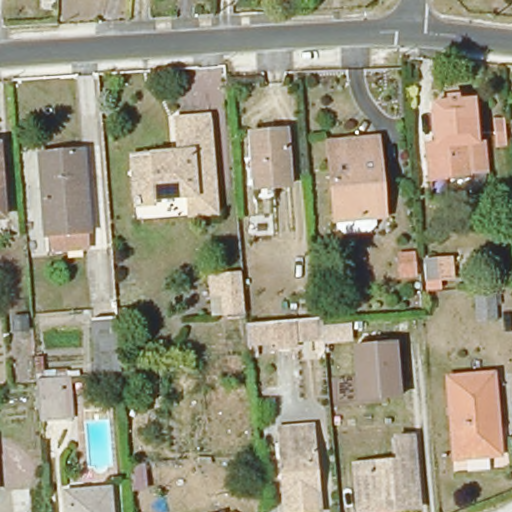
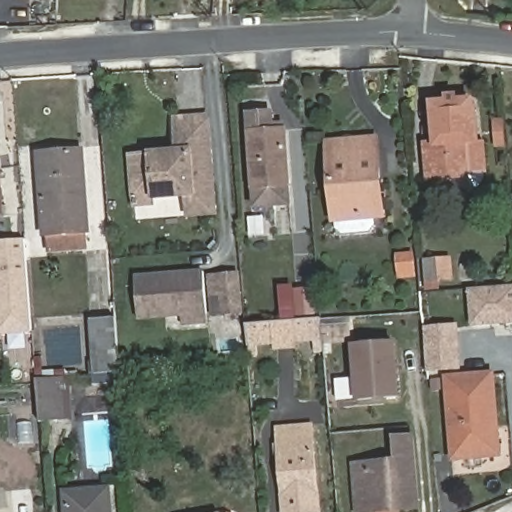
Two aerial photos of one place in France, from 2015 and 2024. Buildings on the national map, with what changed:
unchanged [(430,169),(427,135),(435,135),(432,101),(445,100),(445,98),(445,97),(445,96),(445,95),(446,94),(447,93),(448,92),(449,92),(450,91),(451,91),(452,92),(454,92),(455,93),(455,94),(456,95),(457,95),(457,97),(457,98),(457,99),(471,99),(474,131),(478,131),(481,165),(481,167),(481,170),(480,172),(479,174),(477,176),(476,178),(474,180),(471,180),(469,181),(466,182),(432,186),(430,169)]
unchanged [(145,192),(142,152),(181,149),(178,116),(209,114),(220,219),(194,221),(192,201),(160,205),(147,205),(145,192)]
unchanged [(257,193),(252,137),(286,134),(290,190),(257,193)]
unchanged [(374,220),(333,224),(327,147),(341,146),(375,144),(376,156),(379,187),(381,220),(374,220)]
unchanged [(88,235),(46,238),(38,155),(82,152),(88,235)]
unchanged [(2,222),(0,222),(0,185),(2,222)]
new [(0,336),(0,242),(24,240),(31,333),(0,336)]
unchanged [(438,278),(425,280),(423,259),(436,258),(438,278)]
new [(183,326),(182,316),(139,320),(135,276),(204,270),(210,323),(183,326)]
unchanged [(213,316),(211,276),(237,275),(240,315),(238,315),(240,342),(226,343),(224,315),(213,316)]
new [(470,290),(512,286),(512,325),(470,328),(470,290)]
demolished [(491,317),(472,319),(471,293),(489,291),(491,317)]
unchanged [(244,321),(296,317),(321,315),(323,340),(298,342),(247,346),(244,321)]
unchanged [(120,375),(95,377),(92,322),(115,321),(118,355),(120,375)]
new [(424,326),(457,324),(461,369),(427,371),(424,326)]
unchanged [(401,397),(356,401),(352,345),(397,341),(401,397)]
unchanged [(501,456),(457,459),(450,380),(495,377),(501,456)]
unchanged [(76,400),(61,401),(63,422),(45,424),(42,386),(42,381),(75,379),(76,400)]
unchanged [(278,427),(313,425),(318,488),(319,509),(284,511),(283,490),(278,427)]
unchanged [(356,472),(355,465),(371,464),(372,471),(395,470),(393,445),(411,444),(416,507),(417,512),(356,512),(353,473),(356,472)]
unchanged [(68,512),(67,496),(108,493),(110,512),(68,512)]

